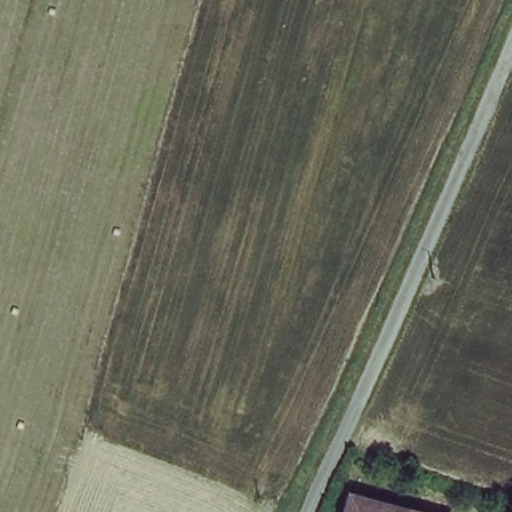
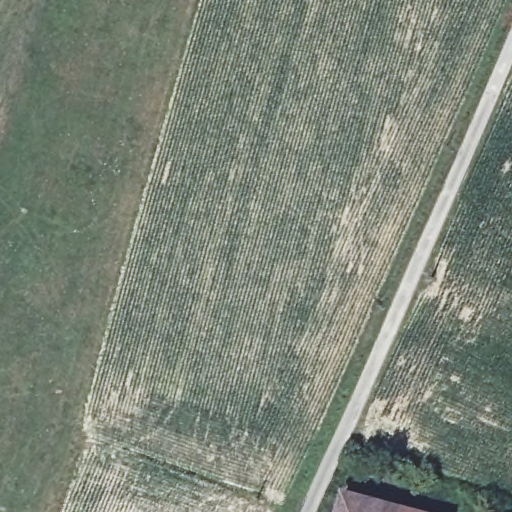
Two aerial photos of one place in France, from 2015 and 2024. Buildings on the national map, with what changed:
unchanged [(343,486),(442,512),(336,512),(343,486)]

